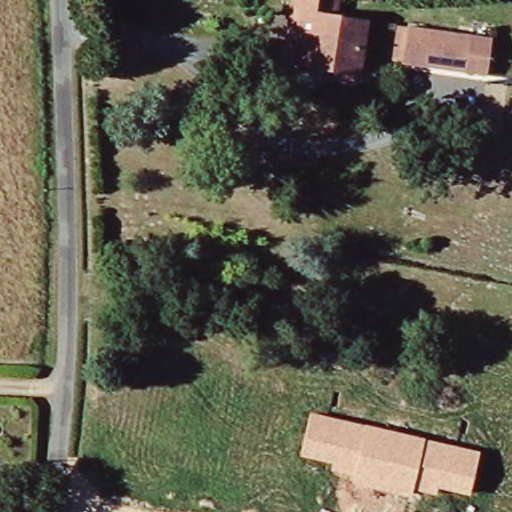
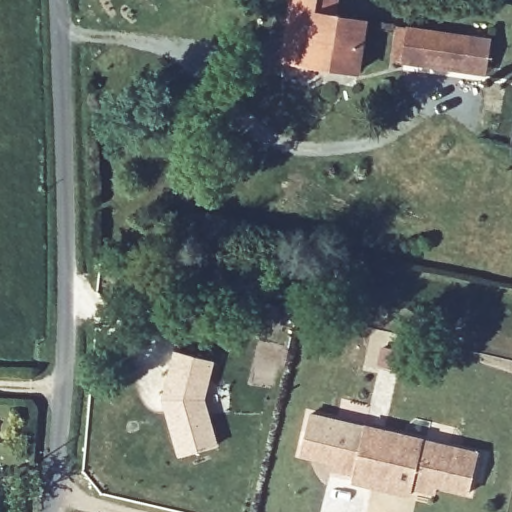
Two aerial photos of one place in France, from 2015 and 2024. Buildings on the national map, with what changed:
unchanged [(347,70),(270,57),(279,0),(310,0),(310,2),(335,7),(332,17),(355,21),(347,70)]
unchanged [(493,35),(487,76),(392,61),(399,22),(493,35)]
new [(205,400),(219,446),(178,459),(161,399),(173,350),(215,361),(205,400)]
unchanged [(480,450),(470,493),(437,485),(435,495),(412,489),(410,497),(351,483),(353,473),(330,468),(330,461),(300,454),(310,410),(480,450)]

